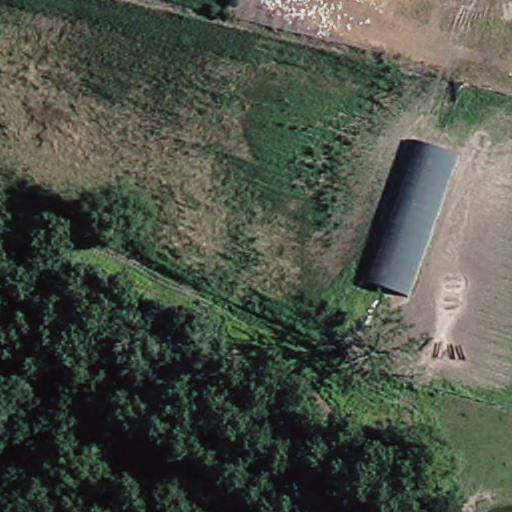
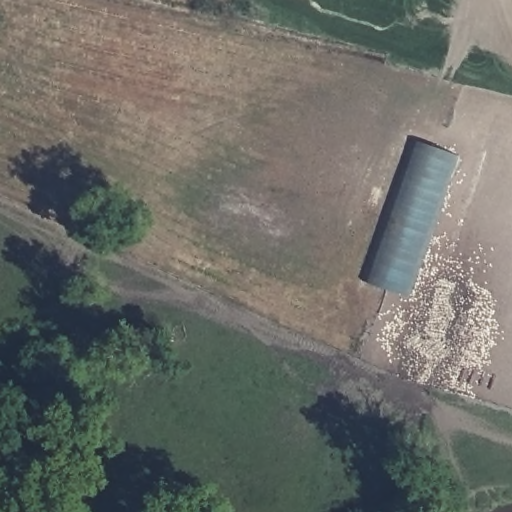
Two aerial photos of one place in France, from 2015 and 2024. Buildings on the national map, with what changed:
unchanged [(399,297),(361,285),(409,146),(445,158),(399,297)]

